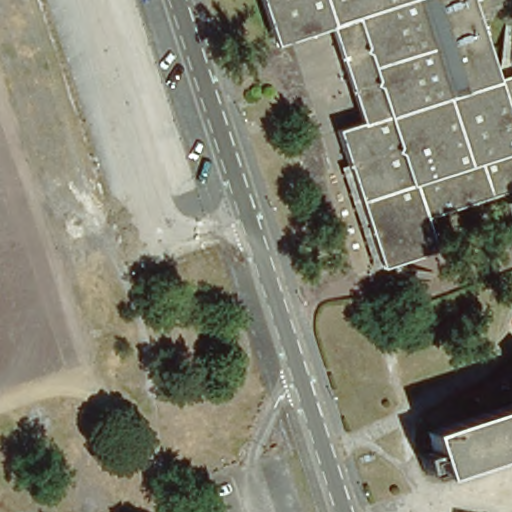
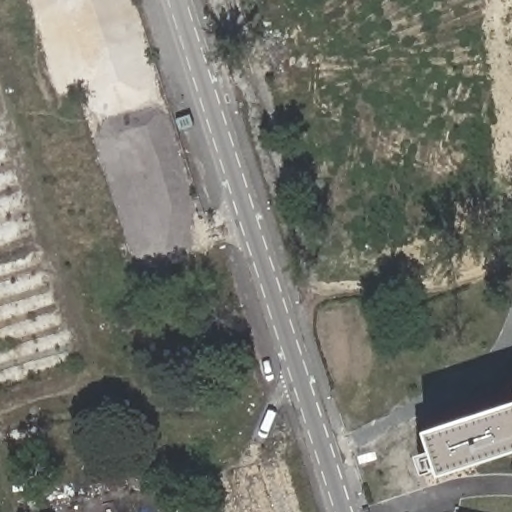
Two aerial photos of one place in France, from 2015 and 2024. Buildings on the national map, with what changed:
demolished [(423,216),(434,250),(380,266),(335,129),(359,121),(328,26),(272,44),(258,0),(433,0),(452,125),(463,204),(423,216)]
demolished [(433,0),(470,0),(495,79),(511,73),(512,75),(512,117),(452,125),(433,0)]
demolished [(512,117),(512,188),(463,204),(452,125),(512,117)]
unchanged [(426,431),(512,404),(512,450),(439,474),(426,431)]

